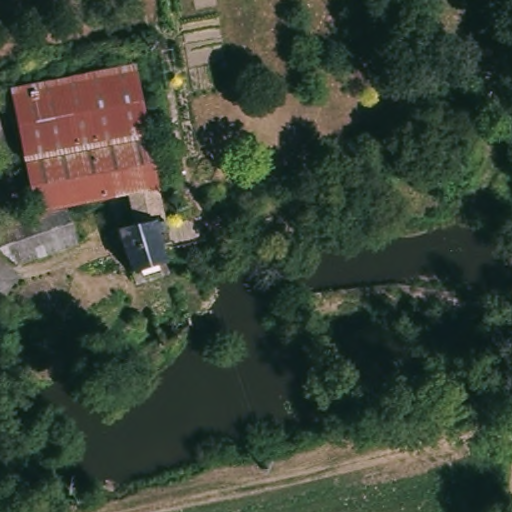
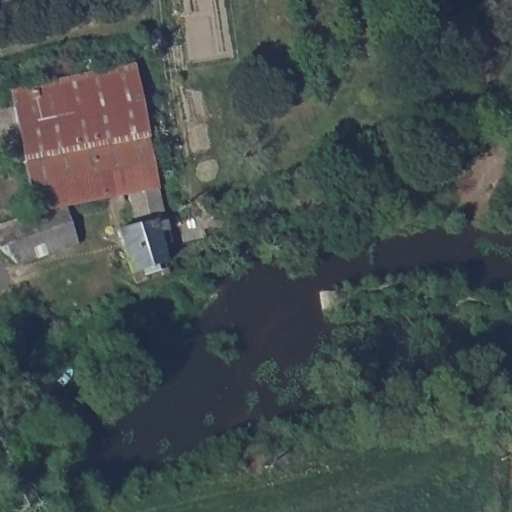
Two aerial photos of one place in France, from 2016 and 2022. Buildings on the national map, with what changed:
unchanged [(129,198),(107,201),(34,218),(13,92),(133,67),(157,191),(129,198)]
unchanged [(114,234),(7,271),(4,272),(3,271),(0,260),(0,229),(34,218),(107,201),(123,231),(139,225),(129,198),(157,191),(169,233),(157,235),(163,264),(130,276),(114,234)]

